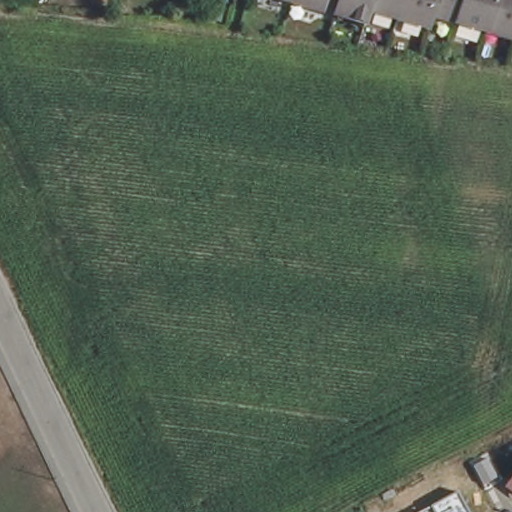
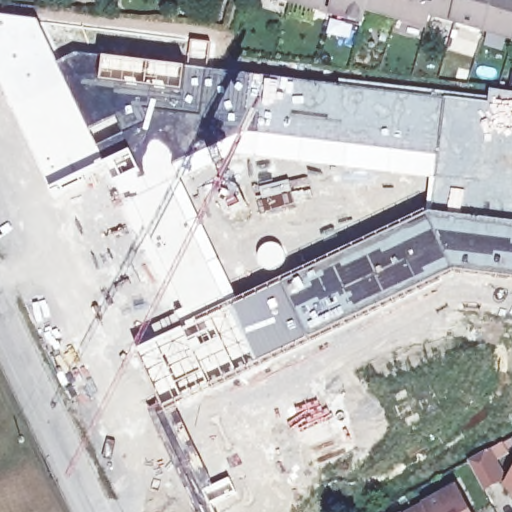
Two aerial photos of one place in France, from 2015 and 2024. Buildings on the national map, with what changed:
unchanged [(444,23),(433,20),(430,33),(369,15),(365,28),(351,24),(269,0),(512,0),(512,43),(444,23)]
new [(102,154),(47,180),(0,82),(0,15),(40,20),(102,154)]
new [(104,58),(188,68),(185,96),(100,85),(104,58)]
new [(303,270),(430,211),(430,178),(237,156),(250,107),(257,109),(265,78),(338,84),(338,81),(487,98),(488,89),(507,91),(510,69),(512,69),(512,280),(455,274),(258,365),(230,307),(303,270)]
unchanged [(486,455),(501,482),(483,492),(468,464),(486,455)]
unchanged [(504,488),(512,476),(512,493),(504,488)]
unchanged [(465,512),(418,512),(455,492),(465,512)]

